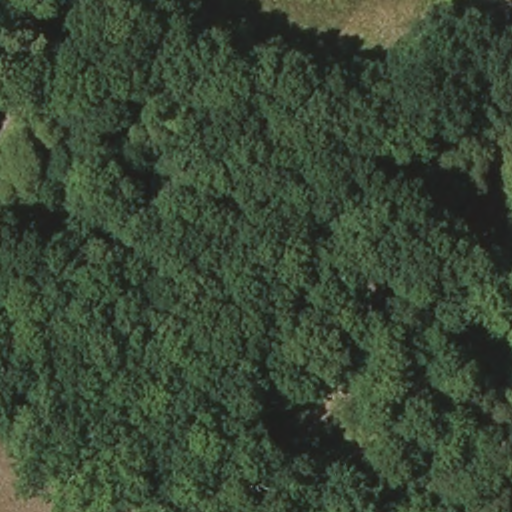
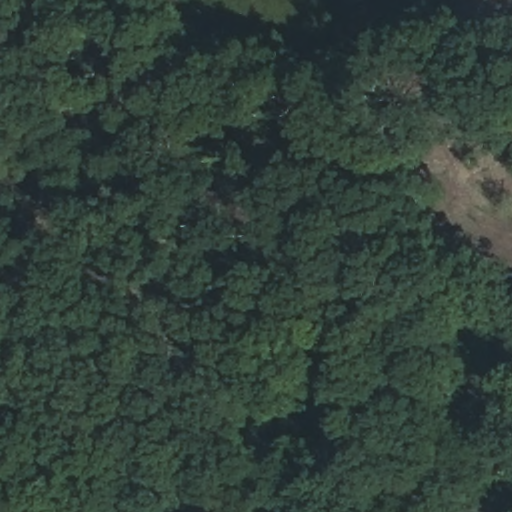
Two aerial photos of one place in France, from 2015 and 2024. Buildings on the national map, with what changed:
[]

